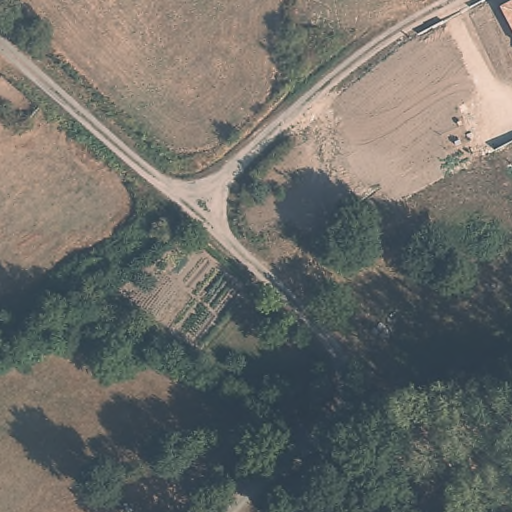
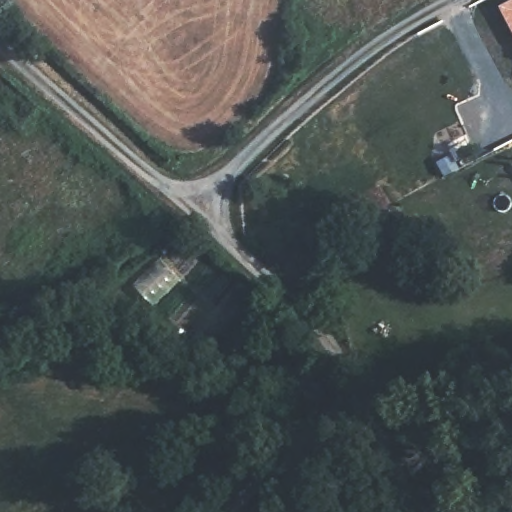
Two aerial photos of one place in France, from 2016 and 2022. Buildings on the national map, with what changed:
unchanged [(512,0),(512,31),(499,6),(512,0)]

